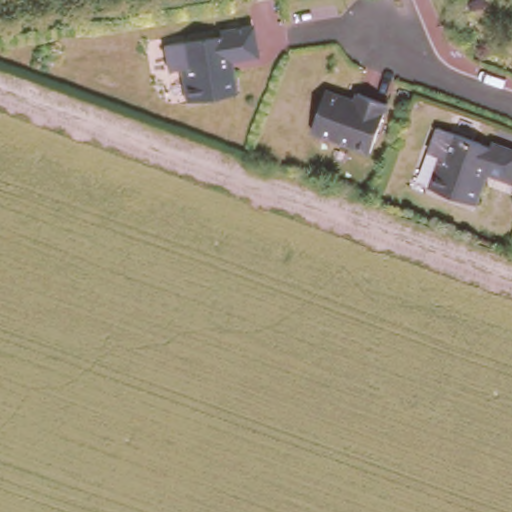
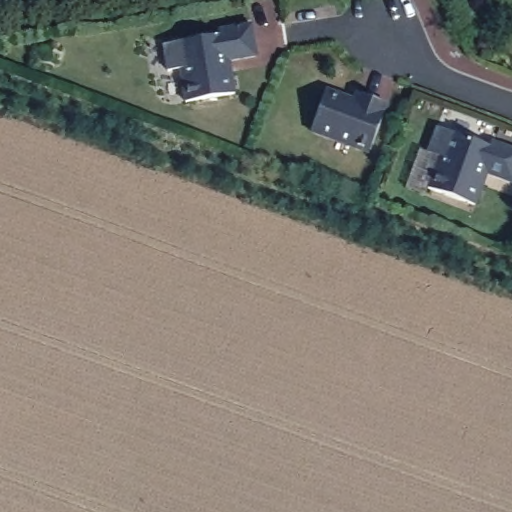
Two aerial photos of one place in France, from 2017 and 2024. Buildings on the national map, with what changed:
unchanged [(234,93),(186,102),(179,69),(167,71),(163,45),(219,35),(218,30),(251,25),(256,56),(228,61),(234,93)]
unchanged [(354,100),(356,93),(387,103),(369,153),(309,132),(325,90),(354,100)]
unchanged [(492,137),(512,145),(512,177),(512,179),(486,169),(474,200),(427,183),(439,151),(427,147),(437,122),(491,142),(492,137)]

